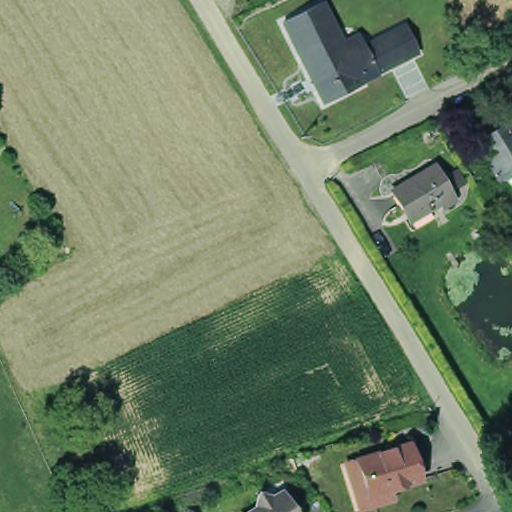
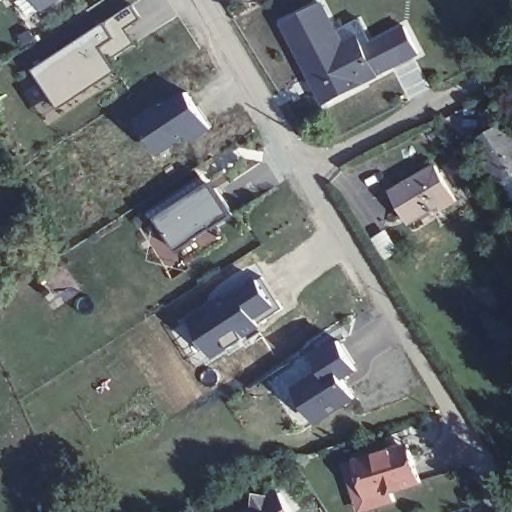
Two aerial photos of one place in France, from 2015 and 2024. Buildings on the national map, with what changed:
new [(38,0),(63,0),(44,11),(38,0)]
unchanged [(310,69),(286,22),(324,3),(348,50),(310,69)]
new [(133,4),(143,19),(127,29),(136,43),(110,61),(118,71),(60,108),(34,70),(106,23),(133,4)]
unchanged [(423,53),(381,74),(366,46),(409,26),(423,53)]
unchanged [(349,54),(366,46),(381,74),(364,82),(366,85),(328,104),(310,69),(348,50),(349,54)]
new [(199,85),(219,123),(159,154),(140,118),(199,85)]
unchanged [(512,134),(512,176),(499,184),(476,146),(508,126),(512,134)]
unchanged [(432,209),(434,213),(412,225),(393,190),(436,166),(456,202),(443,209),(440,204),(432,209)]
new [(176,258),(149,217),(214,175),(241,216),(176,258)]
new [(289,314),(211,359),(188,318),(264,273),(289,314)]
new [(361,367),(346,377),(359,398),(318,423),(296,389),(323,372),(314,357),(343,338),(361,367)]
unchanged [(389,493),(392,502),(368,508),(354,461),(391,450),(407,445),(409,450),(419,484),(389,493)]
unchanged [(256,509),(258,496),(274,498),(281,493),(294,512),(251,512),(256,509)]

